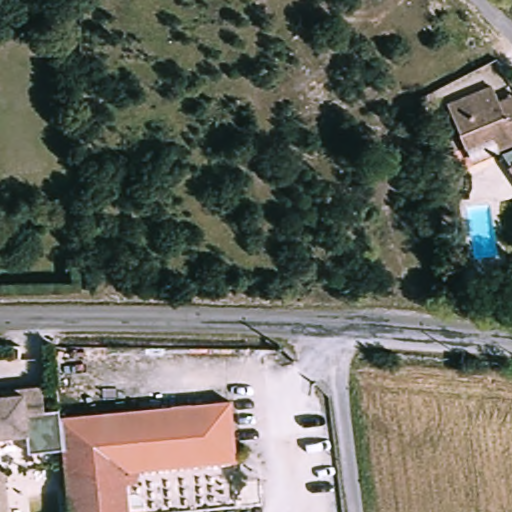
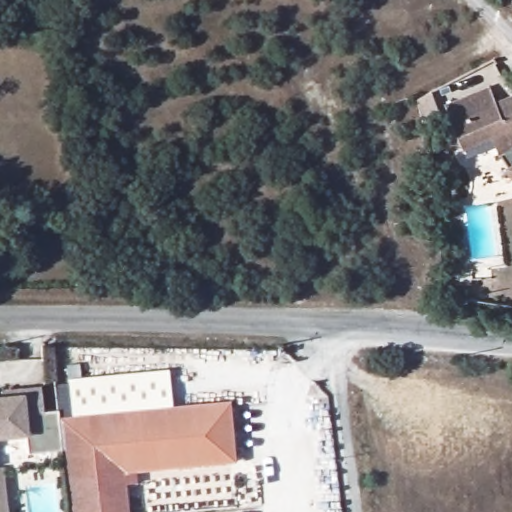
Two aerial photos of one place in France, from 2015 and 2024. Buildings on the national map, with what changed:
unchanged [(490,91),(505,115),(512,112),(512,152),(504,157),(495,143),(467,157),(445,118),(490,91)]
unchanged [(512,165),(512,206),(495,174),(512,165)]
new [(168,368),(172,407),(72,417),(67,379),(168,368)]
unchanged [(6,383),(29,380),(28,375),(47,372),(51,405),(66,403),(67,403),(67,411),(68,418),(67,418),(69,436),(36,440),(34,421),(11,424),(0,425),(0,384),(6,383)]
unchanged [(226,401),(230,465),(133,472),(135,490),(137,512),(77,512),(69,436),(67,418),(226,401)]
unchanged [(10,512),(0,512),(0,465),(7,464),(10,512)]

